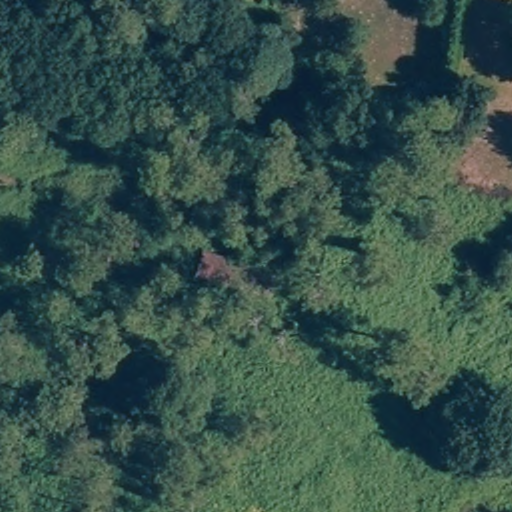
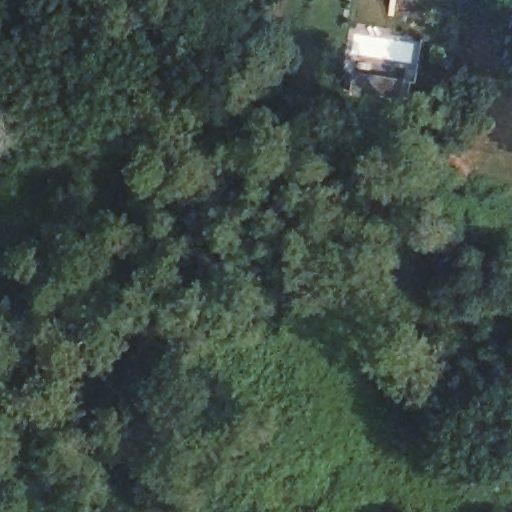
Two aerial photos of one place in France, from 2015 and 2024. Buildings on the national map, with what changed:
unchanged [(269,296),(197,275),(203,251),(276,272),(269,296)]

